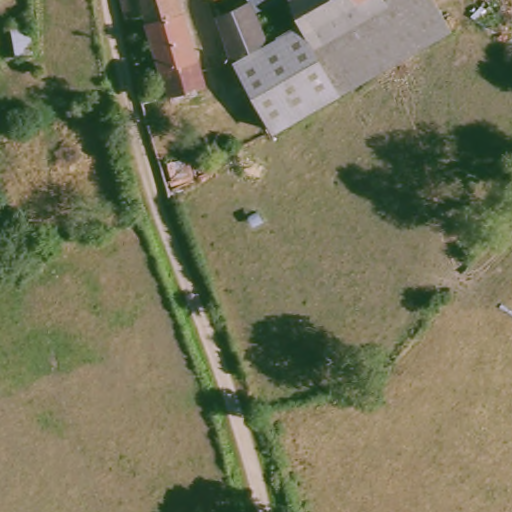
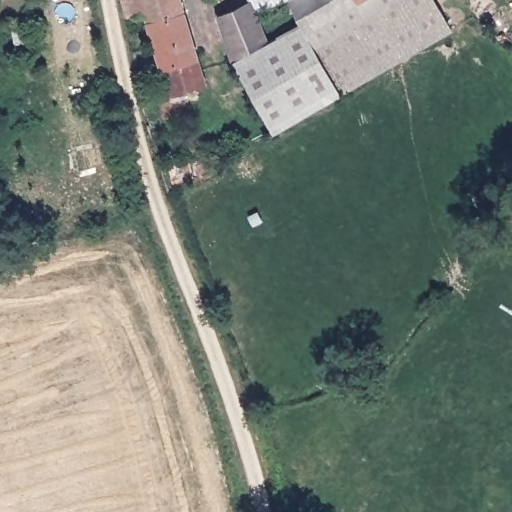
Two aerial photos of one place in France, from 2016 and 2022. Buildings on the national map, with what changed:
unchanged [(146,15),(127,20),(124,0),(183,0),(187,15),(150,26),(146,15)]
unchanged [(271,131),(230,61),(230,60),(263,42),(297,24),(288,0),(430,0),(448,31),(271,131)]
unchanged [(247,3),(246,0),(280,0),(251,11),(247,3)]
unchanged [(215,17),(247,3),(251,11),(263,42),(230,60),(215,17)]
unchanged [(156,48),(150,26),(187,15),(200,63),(207,86),(171,97),(165,74),(156,48)]
unchanged [(208,142),(216,177),(177,191),(165,156),(208,142)]

